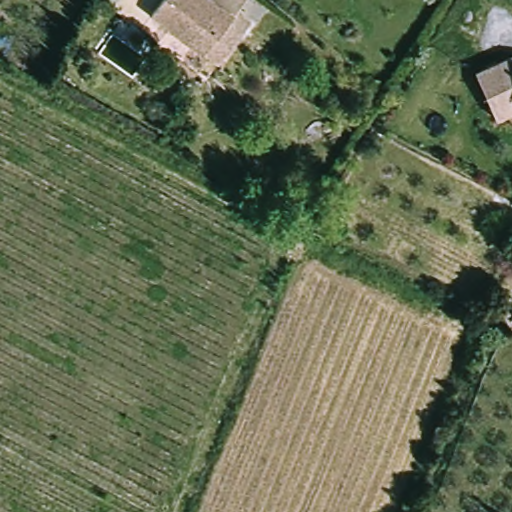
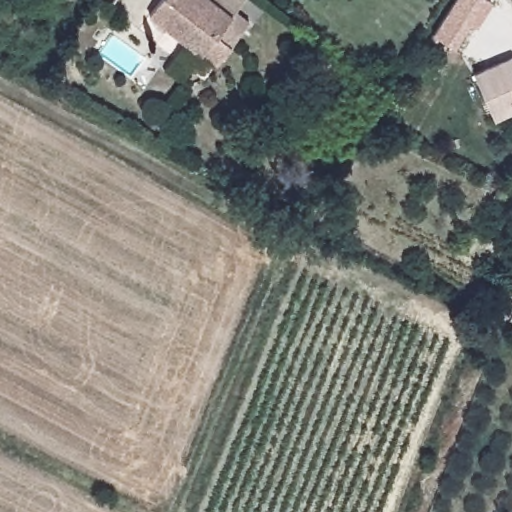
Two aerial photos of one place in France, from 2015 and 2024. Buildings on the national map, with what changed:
unchanged [(250,21),(215,66),(202,55),(200,58),(148,17),(161,0),(245,0),(237,11),(250,21)]
new [(490,0),(492,1),(475,27),(472,24),(455,50),(435,36),(450,11),(457,0),(490,0)]
unchanged [(512,59),(512,60),(512,98),(510,111),(493,120),(473,76),(512,59)]

